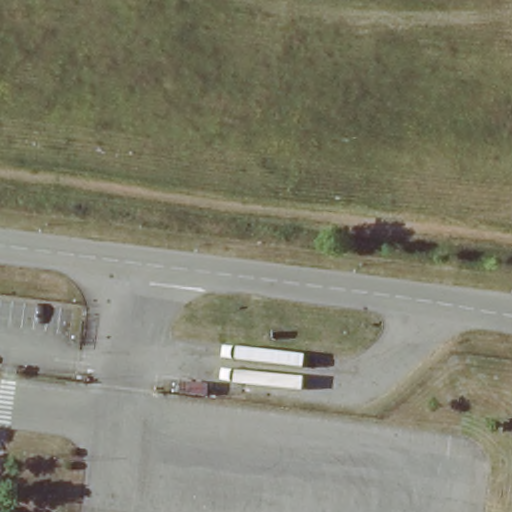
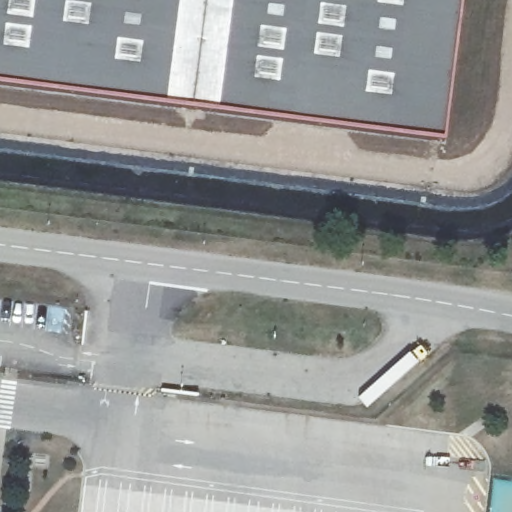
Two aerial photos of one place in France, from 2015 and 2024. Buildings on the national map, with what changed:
new [(0,85),(0,0),(462,0),(444,143),(0,85)]

